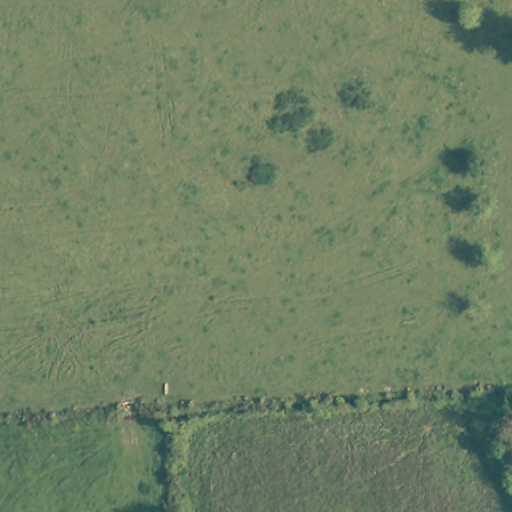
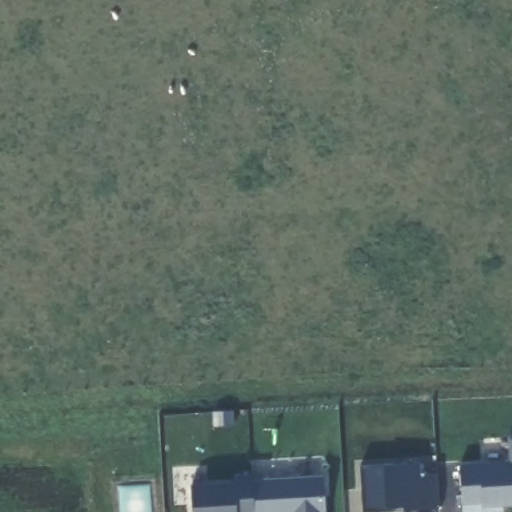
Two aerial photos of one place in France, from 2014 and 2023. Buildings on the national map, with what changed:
new [(362,465),(420,462),(421,473),(437,473),(438,507),(365,511),(362,465)]
new [(234,481),(234,474),(253,473),(253,479),(323,475),(325,512),(191,512),(191,483),(234,481)]

